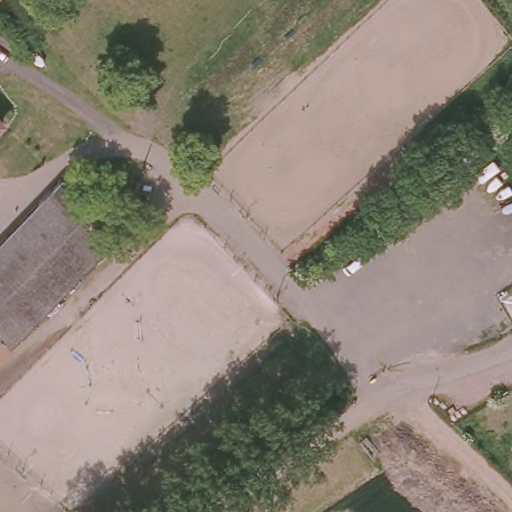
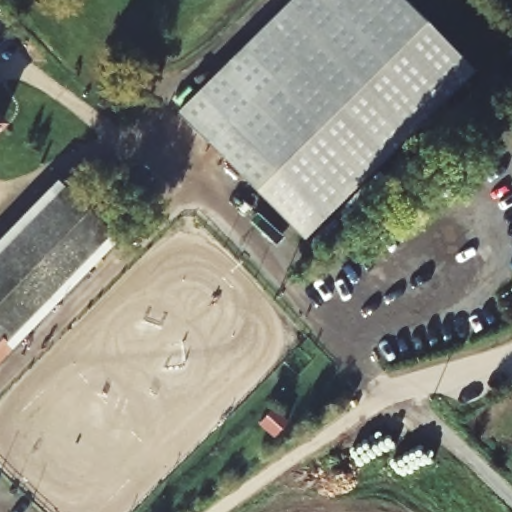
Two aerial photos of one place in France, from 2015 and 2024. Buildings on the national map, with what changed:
new [(405,0),(473,69),(292,235),(184,110),(293,0),(405,0)]
unchanged [(8,122),(0,130),(0,115),(8,122)]
unchanged [(0,333),(0,246),(67,176),(124,235),(14,348),(0,333)]
unchanged [(14,348),(0,362),(0,333),(14,348)]

